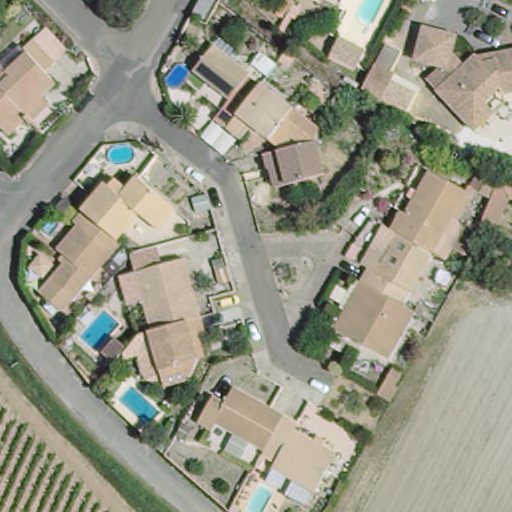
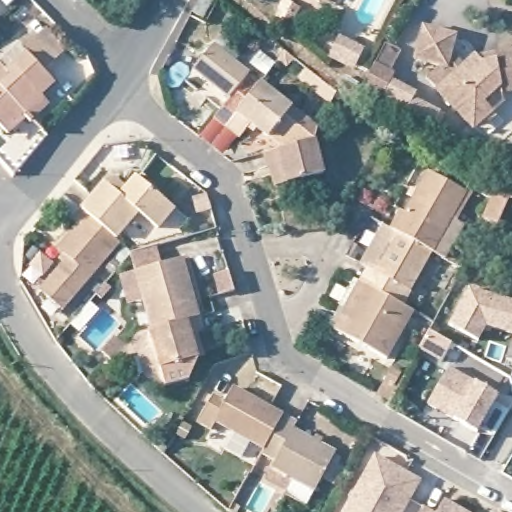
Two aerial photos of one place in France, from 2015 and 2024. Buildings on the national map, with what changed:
unchanged [(195,3),(188,0),(196,0),(195,3)]
unchanged [(512,44),(512,86),(504,87),(471,118),(439,83),(455,68),(449,61),(415,56),(420,22),(455,27),(452,45),(462,59),(479,50),(512,44)]
unchanged [(233,94),(245,102),(224,129),(212,120),(225,100),(190,73),(210,45),(247,73),(233,94)]
unchanged [(340,59),(332,76),(309,64),(317,48),(340,59)]
unchanged [(3,135),(0,132),(0,68),(1,70),(21,51),(55,86),(3,135)]
unchanged [(397,73),(384,98),(365,88),(376,63),(397,73)]
unchanged [(279,122),(304,141),(280,147),(250,125),(239,140),(224,129),(245,102),(259,82),(290,106),(279,122)]
unchanged [(320,177),(275,188),(270,169),(263,170),(258,154),(280,147),(304,141),(309,139),(320,177)]
unchanged [(434,252),(422,247),(387,228),(397,209),(403,211),(425,170),(465,191),(434,252)]
unchanged [(175,208),(154,232),(137,218),(117,241),(79,208),(102,183),(112,190),(119,183),(131,192),(141,182),(175,208)]
unchanged [(70,298),(45,277),(62,255),(54,246),(74,221),(70,217),(78,207),(79,208),(117,241),(70,298)]
unchanged [(392,303),(350,283),(357,267),(364,271),(387,228),(422,247),(392,303)]
unchanged [(139,322),(129,291),(119,294),(112,275),(123,272),(122,269),(174,254),(189,306),(139,322)]
unchanged [(370,359),(324,332),(350,283),(392,303),(399,308),(370,359)]
new [(473,286),(512,298),(512,331),(489,324),(480,339),(451,323),(473,286)]
unchanged [(139,322),(189,306),(195,327),(187,328),(194,352),(183,370),(157,378),(152,364),(139,322)]
new [(454,364),(502,392),(498,400),(512,408),(512,409),(498,433),(484,425),(482,429),(433,401),(454,364)]
unchanged [(225,427),(219,439),(195,426),(210,396),(217,400),(228,404),(235,389),(280,411),(262,447),(225,427)]
unchanged [(313,489),(267,464),(270,458),(259,451),(262,447),(280,411),(294,420),(289,429),(334,452),(313,489)]
new [(424,477),(404,512),(346,512),(380,452),(424,477)]
new [(441,510),(450,495),(479,512),(423,512),(428,503),(441,510)]

